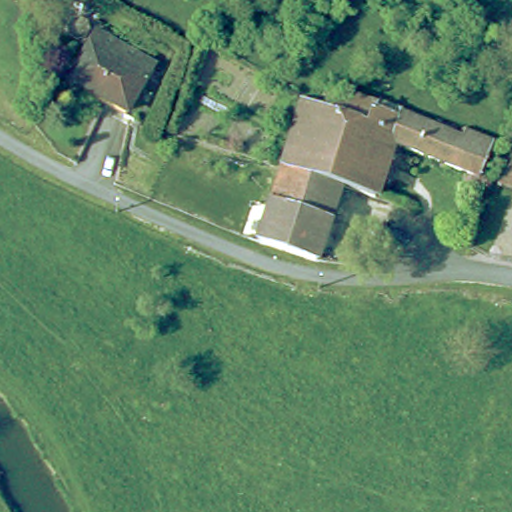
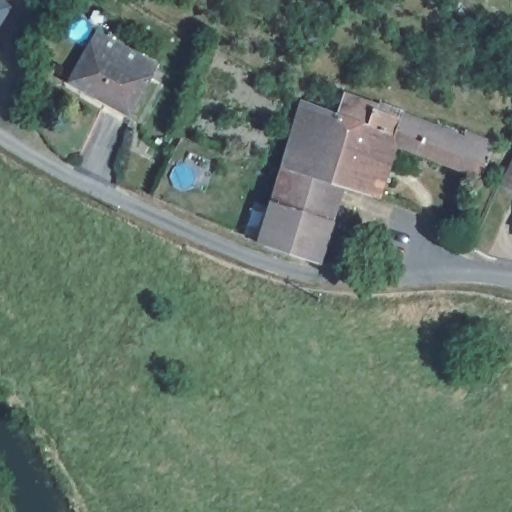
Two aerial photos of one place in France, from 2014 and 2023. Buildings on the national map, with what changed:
new [(0,22),(0,0),(10,6),(0,22)]
unchanged [(107,29),(161,65),(155,75),(133,110),(77,74),(100,39),(107,29)]
unchanged [(371,120),(371,119),(372,116),(374,117),(377,110),(378,106),(402,114),(404,109),(465,132),(467,127),(489,134),(476,170),(446,159),(389,139),(386,147),(371,192),(349,184),(337,180),(283,162),(306,94),(371,120)]
unchanged [(257,236),(283,162),(337,180),(314,255),(257,236)]
unchanged [(504,185),(512,163),(512,187),(504,185)]

